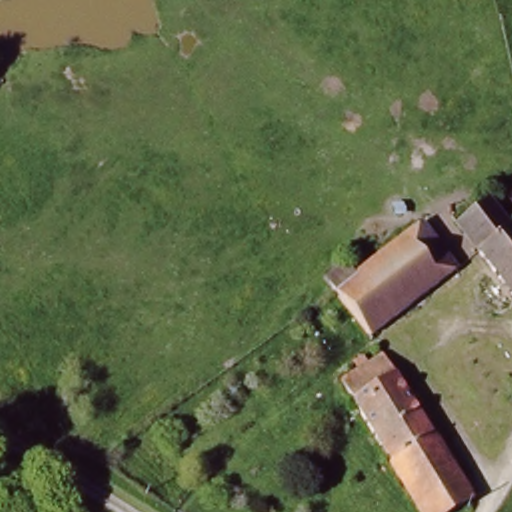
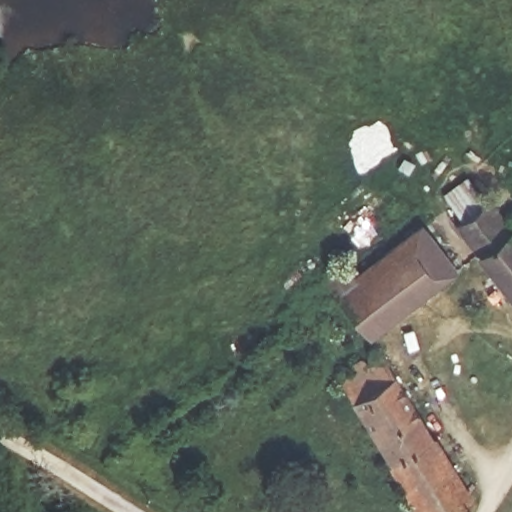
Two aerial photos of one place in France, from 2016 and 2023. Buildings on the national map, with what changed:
unchanged [(486,201),(512,230),(512,296),(455,224),(486,201)]
unchanged [(326,286),(347,271),(356,282),(436,224),(467,266),(366,343),(336,300),(326,286)]
unchanged [(350,398),(386,374),(445,460),(402,485),(350,398)]
unchanged [(453,512),(419,512),(402,485),(445,460),(472,500),(453,512)]

